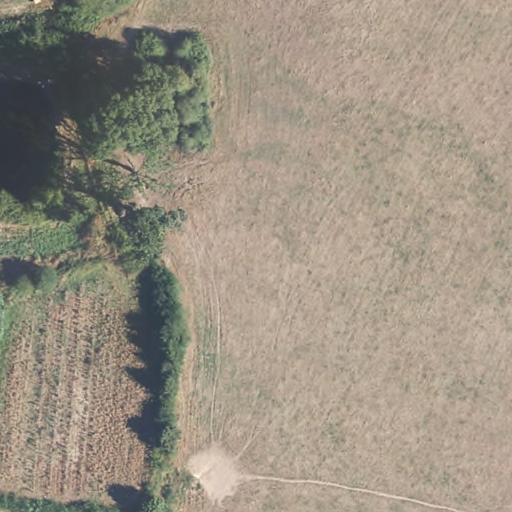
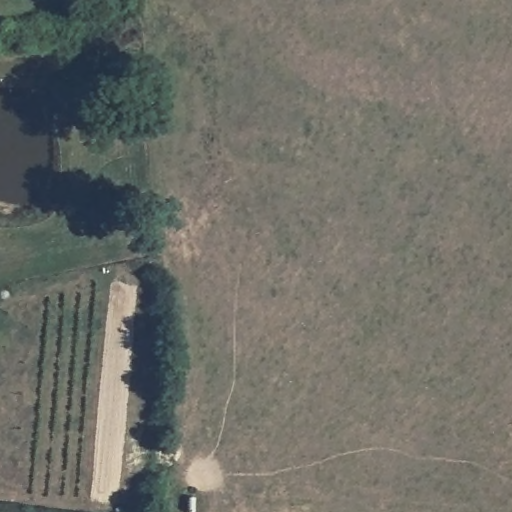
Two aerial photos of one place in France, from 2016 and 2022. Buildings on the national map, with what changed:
[]

